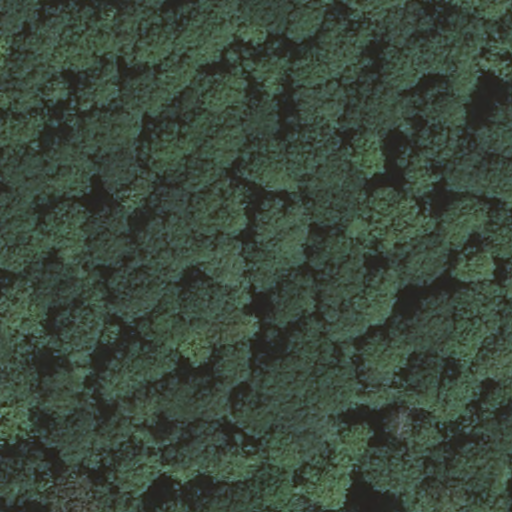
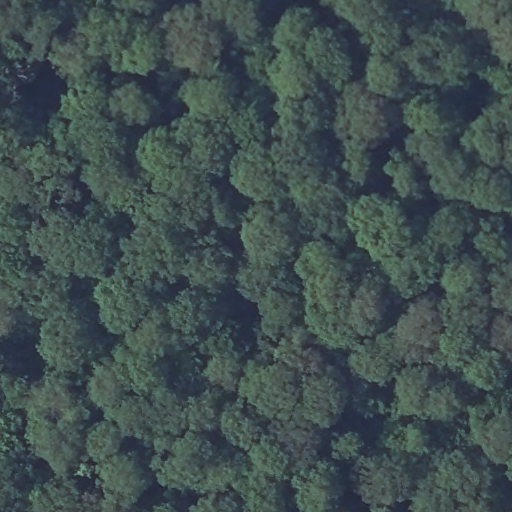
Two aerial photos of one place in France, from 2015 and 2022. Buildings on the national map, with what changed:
[]

